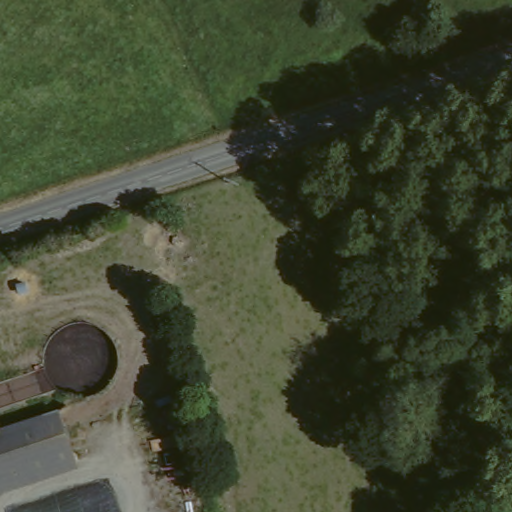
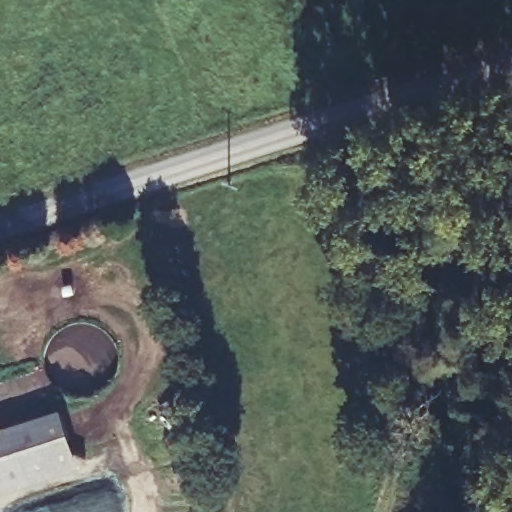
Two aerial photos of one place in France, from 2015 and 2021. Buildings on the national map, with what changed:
unchanged [(62,405),(79,455),(0,481),(0,426),(62,405)]

